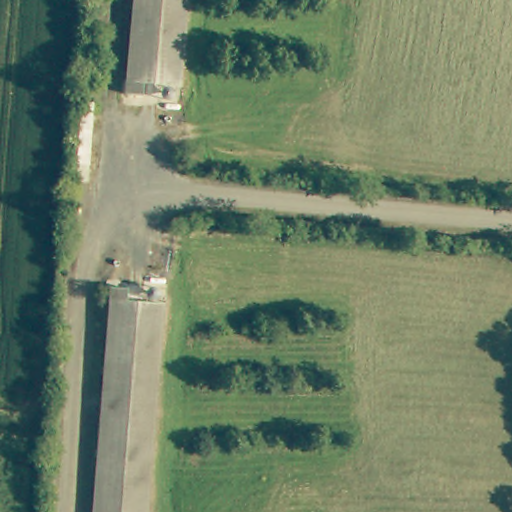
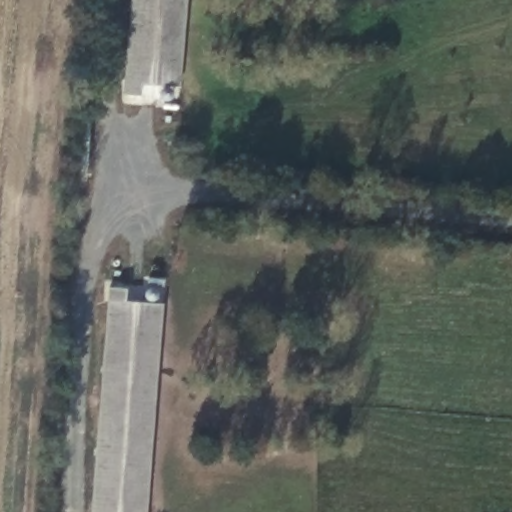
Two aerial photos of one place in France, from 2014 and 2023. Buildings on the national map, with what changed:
unchanged [(173,88),(140,86),(140,99),(121,98),(121,85),(126,85),(133,0),(180,0),(173,88)]
unchanged [(92,512),(109,303),(104,303),(105,289),(122,290),(122,303),(156,305),(140,512),(92,512)]

